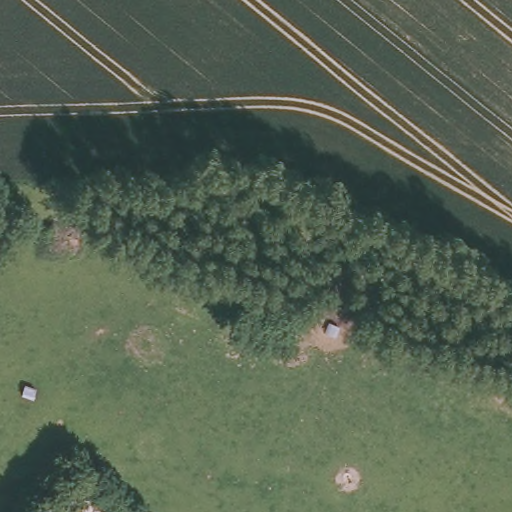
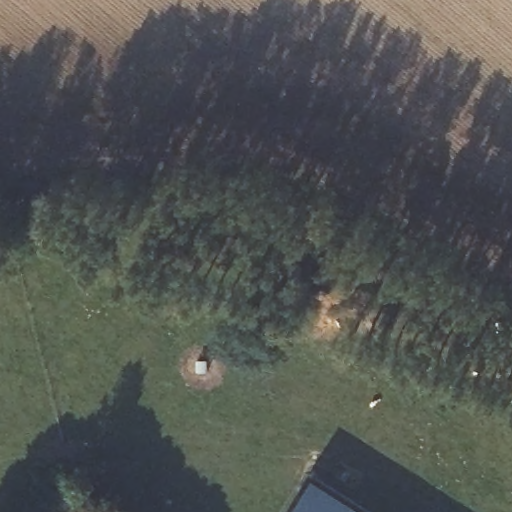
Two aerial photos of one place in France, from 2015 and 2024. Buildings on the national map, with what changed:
new [(375,512),(301,512),(323,480),(375,512)]

